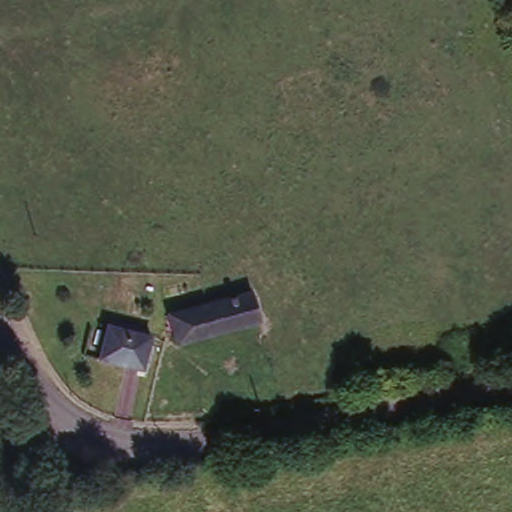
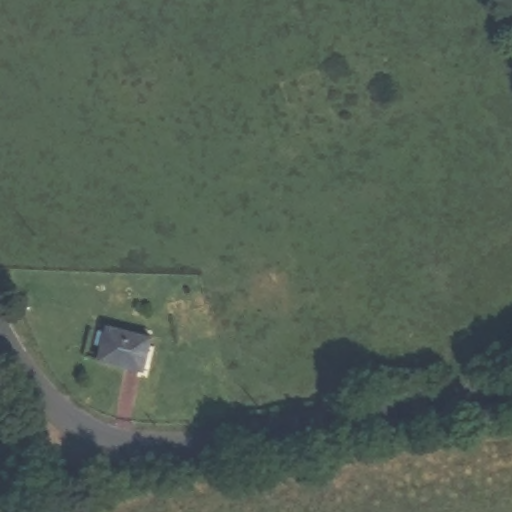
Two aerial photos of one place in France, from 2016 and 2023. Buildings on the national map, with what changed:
unchanged [(189,309),(251,293),(260,318),(174,341),(165,316),(189,309)]
unchanged [(142,367),(100,360),(104,326),(147,334),(142,367)]

